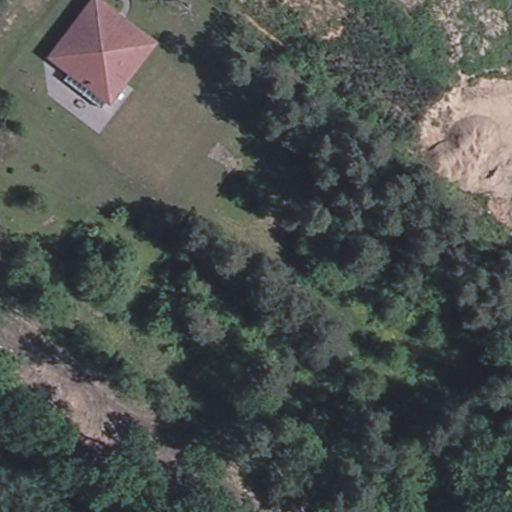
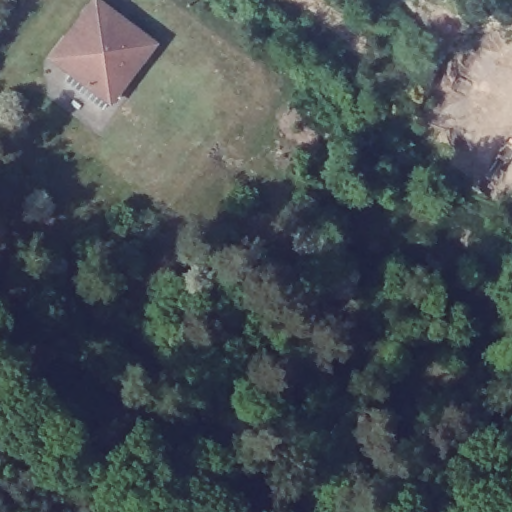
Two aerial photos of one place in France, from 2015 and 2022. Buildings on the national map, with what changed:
unchanged [(63,35),(90,0),(95,0),(147,41),(105,96),(67,68),(49,54),(56,44),(63,35)]

